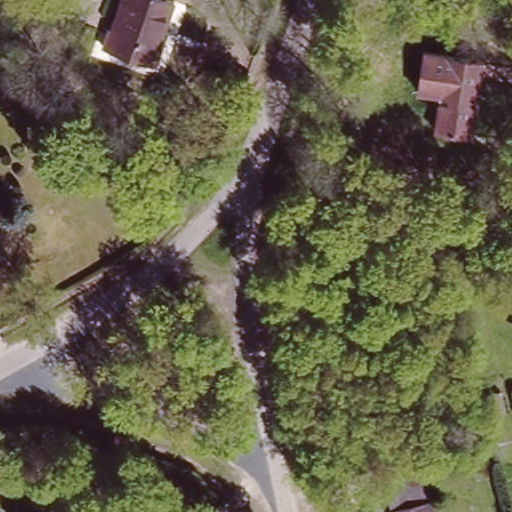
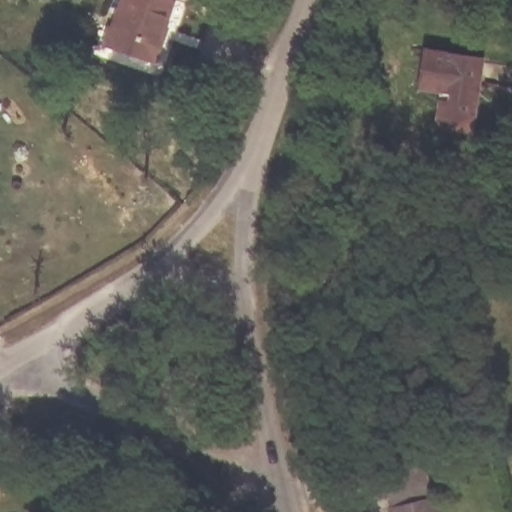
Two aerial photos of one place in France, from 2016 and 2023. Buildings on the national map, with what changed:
unchanged [(126,0),(163,0),(161,6),(171,9),(150,73),(105,56),(126,0)]
unchanged [(416,51),(477,61),(468,135),(431,129),(435,94),(412,91),(416,51)]
unchanged [(428,462),(439,512),(393,512),(384,473),(428,462)]

